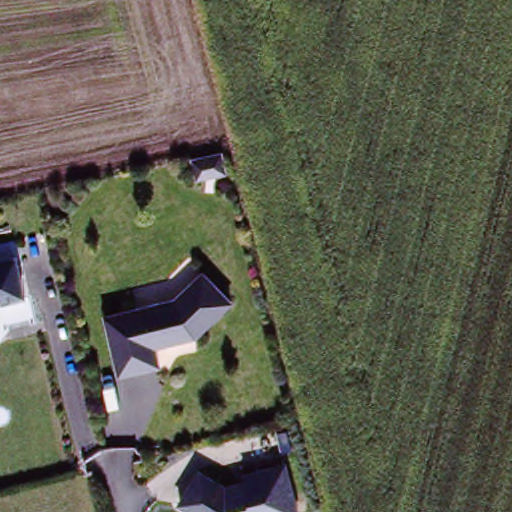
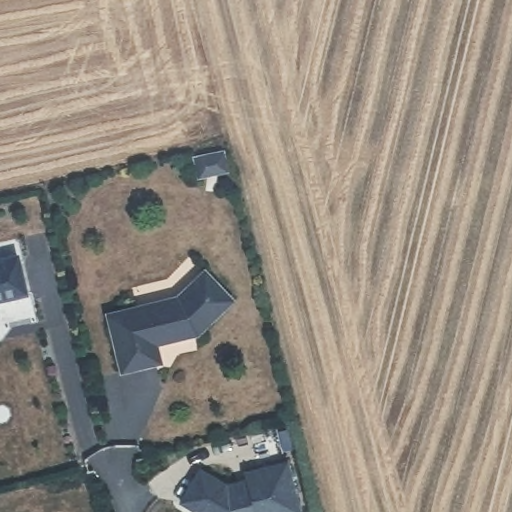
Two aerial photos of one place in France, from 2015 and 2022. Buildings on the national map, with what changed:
unchanged [(17,263),(24,295),(0,300),(0,267),(17,263)]
unchanged [(179,300),(207,275),(234,305),(198,337),(194,333),(187,340),(156,346),(160,365),(120,372),(109,315),(179,300)]
unchanged [(226,485),(247,480),(246,472),(287,462),(299,512),(199,512),(181,500),(200,469),(226,485)]

